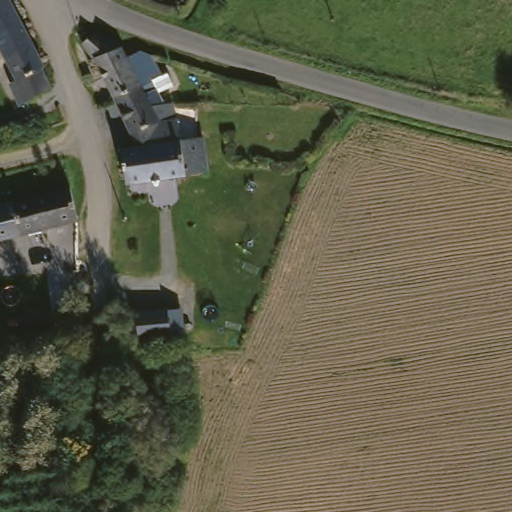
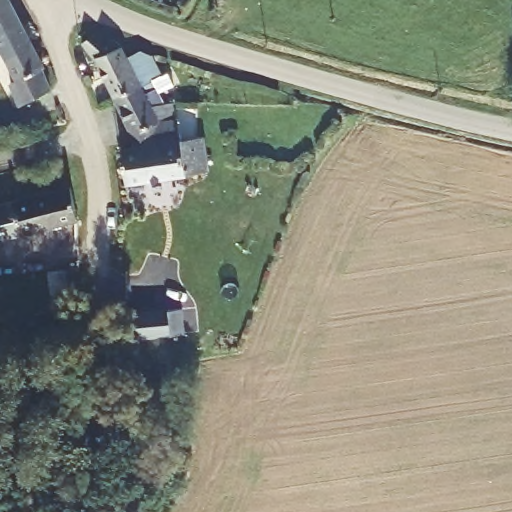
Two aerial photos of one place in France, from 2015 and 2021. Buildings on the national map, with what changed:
unchanged [(42,70),(51,90),(20,106),(10,84),(16,80),(0,48),(0,0),(10,0),(44,68),(42,70)]
unchanged [(151,88),(141,93),(137,86),(109,99),(90,58),(89,60),(77,45),(87,36),(111,42),(118,46),(122,59),(135,52),(147,57),(157,76),(157,77),(163,74),(169,87),(154,94),(151,88)]
unchanged [(137,86),(141,93),(148,106),(167,104),(170,120),(173,120),(177,141),(131,148),(109,99),(137,86)]
unchanged [(177,141),(192,139),(197,174),(122,185),(117,150),(131,148),(177,141)]
unchanged [(78,222),(0,242),(0,205),(70,188),(78,222)]
unchanged [(130,316),(167,312),(167,316),(178,315),(179,338),(167,338),(166,341),(133,344),(130,316)]

